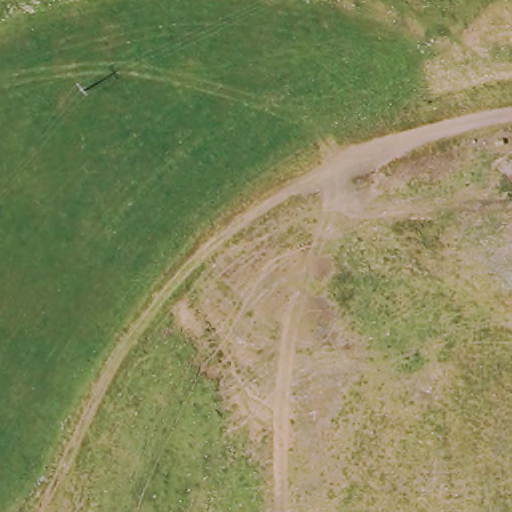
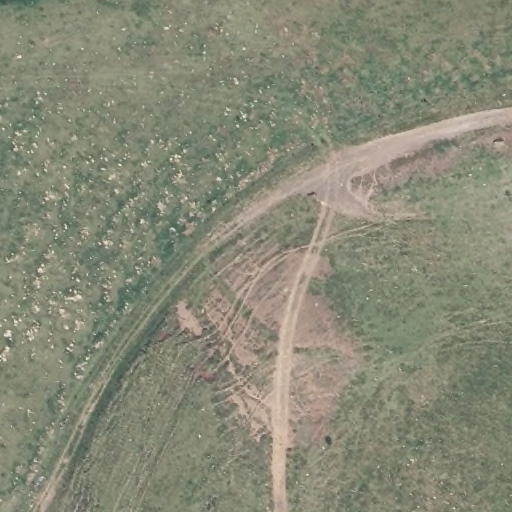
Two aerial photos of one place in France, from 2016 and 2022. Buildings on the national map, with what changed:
[]

